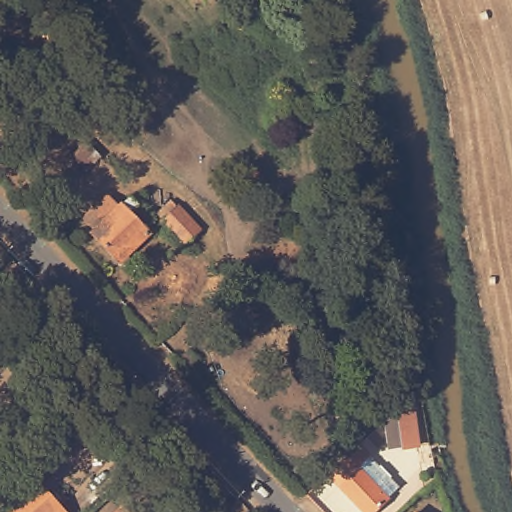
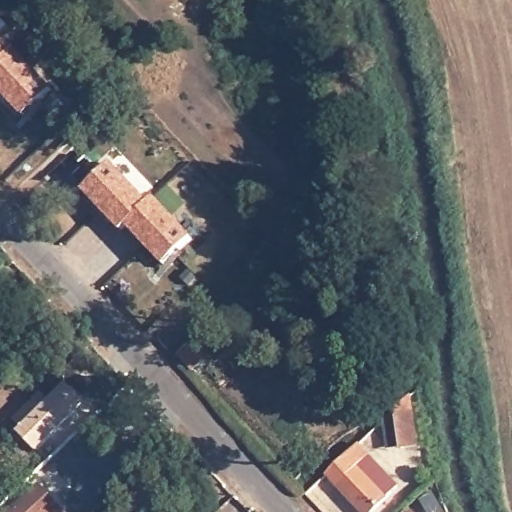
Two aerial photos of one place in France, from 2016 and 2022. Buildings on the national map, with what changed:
new [(15,48),(54,89),(25,117),(0,91),(0,43),(10,54),(15,48)]
demolished [(85,141),(97,155),(79,173),(66,159),(85,141)]
new [(164,266),(126,226),(120,231),(81,191),(112,162),(149,202),(155,196),(193,238),(164,266)]
demolished [(160,208),(172,197),(177,203),(179,201),(203,227),(189,240),(160,208)]
demolished [(126,212),(139,201),(146,209),(137,218),(157,239),(129,267),(101,237),(104,234),(94,224),(116,202),(126,212)]
unchanged [(188,349),(197,359),(189,367),(179,357),(188,349)]
unchanged [(409,395),(415,449),(400,450),(395,409),(409,395)]
unchanged [(356,455),(396,499),(381,512),(352,512),(325,484),(356,455)]
unchanged [(0,509),(34,478),(65,511),(63,512),(0,512),(0,509)]
unchanged [(126,505),(133,512),(118,512),(126,505)]
unchanged [(420,512),(412,512),(416,508),(420,512)]

